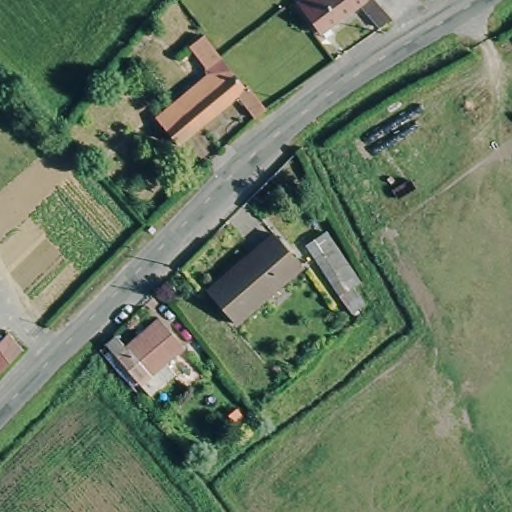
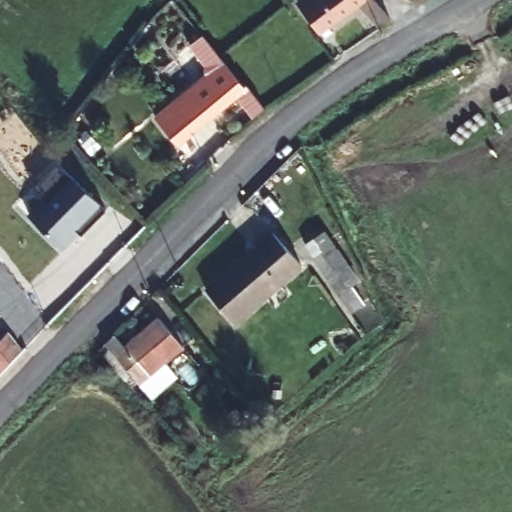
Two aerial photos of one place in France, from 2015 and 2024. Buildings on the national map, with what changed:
unchanged [(390,18),(377,27),(357,3),(326,26),(330,32),(323,38),(297,3),(302,0),(373,0),(382,9),(390,18)]
unchanged [(201,40),(242,92),(245,89),(263,113),(252,123),(235,100),(176,149),(154,122),(205,80),(204,70),(188,50),(200,40),(201,40)]
new [(107,210),(81,235),(79,233),(65,249),(27,213),(47,195),(35,185),(57,163),(107,210)]
unchanged [(205,290),(271,232),(300,265),(232,323),(205,290)]
unchanged [(347,311),(337,294),(336,295),(312,257),(320,252),(312,239),(324,232),(357,282),(350,286),(361,302),(347,311)]
unchanged [(149,400),(139,389),(104,349),(113,339),(124,351),(157,322),(182,351),(164,367),(174,378),(149,400)]
unchanged [(7,331),(20,348),(0,370),(0,339),(7,331)]

